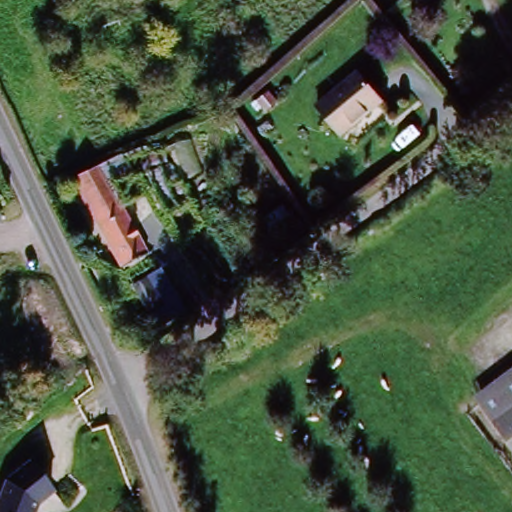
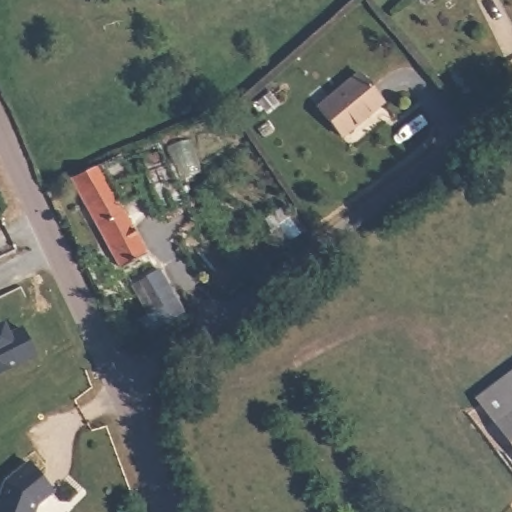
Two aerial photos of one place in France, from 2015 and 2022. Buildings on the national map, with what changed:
unchanged [(433,2),(431,0),(435,0),(433,2)]
unchanged [(357,76),(376,101),(334,133),(314,108),(357,76)]
unchanged [(104,165),(148,245),(152,252),(127,267),(82,178),(104,165)]
unchanged [(188,312),(155,335),(126,285),(162,268),(188,312)]
new [(4,323),(10,334),(22,328),(37,357),(0,375),(0,325),(4,323)]
unchanged [(512,377),(512,447),(479,400),(512,377)]
unchanged [(32,503),(28,512),(0,512),(0,487),(4,480),(28,463),(48,493),(32,503)]
unchanged [(500,512),(486,512),(496,506),(500,512)]

